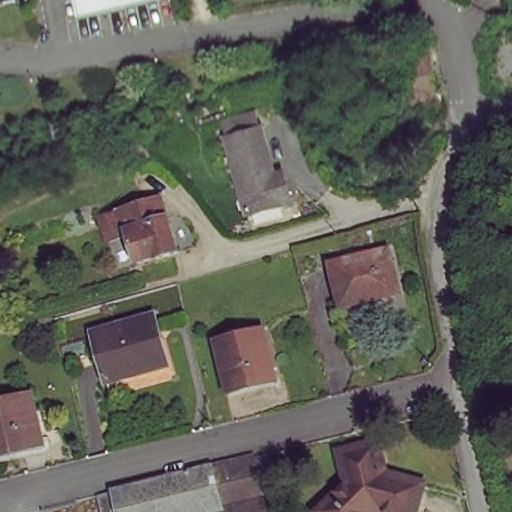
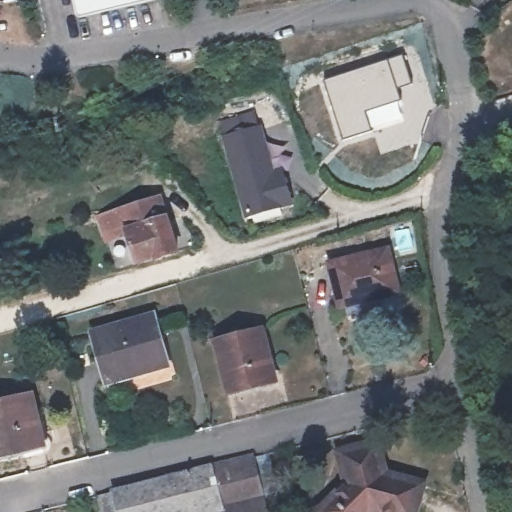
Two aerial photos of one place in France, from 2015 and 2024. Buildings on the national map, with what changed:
unchanged [(79,20),(71,0),(153,0),(79,20)]
unchanged [(410,72),(401,39),(421,35),(428,68),(410,72)]
new [(373,131),(341,142),(322,80),(403,53),(412,84),(397,89),(401,101),(399,102),(403,121),(373,131)]
unchanged [(281,189),(287,210),(245,223),(222,143),(255,134),(271,182),(278,179),(281,189)]
unchanged [(153,259),(151,256),(135,261),(119,212),(157,199),(174,251),(153,259)]
unchanged [(113,237),(117,250),(105,254),(95,221),(119,212),(125,231),(113,237)]
unchanged [(396,300),(340,314),(331,270),(389,256),(396,300)]
unchanged [(165,344),(161,346),(167,372),(111,387),(98,338),(158,321),(165,344)]
unchanged [(275,387),(230,397),(216,348),(261,336),(275,387)]
unchanged [(45,450),(0,460),(0,405),(32,397),(45,450)]
unchanged [(346,455),(381,447),(389,477),(425,486),(425,487),(420,512),(329,512),(354,487),(346,455)]
unchanged [(222,468),(261,458),(274,512),(232,512),(231,506),(222,468)]
unchanged [(206,512),(112,512),(108,497),(197,474),(222,468),(231,506),(206,512)]

